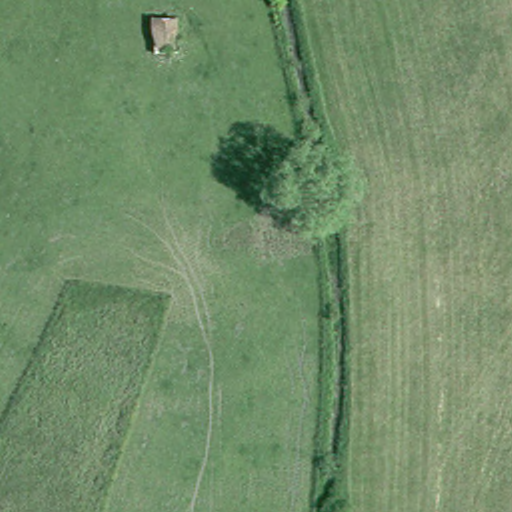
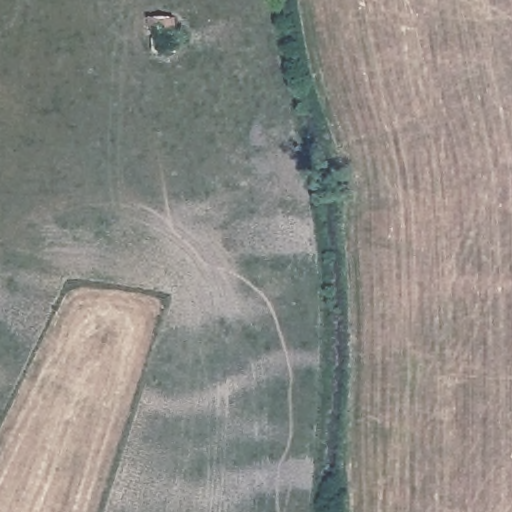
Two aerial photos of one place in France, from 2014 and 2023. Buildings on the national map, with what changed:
unchanged [(154,50),(154,16),(176,15),(177,50),(154,50)]

